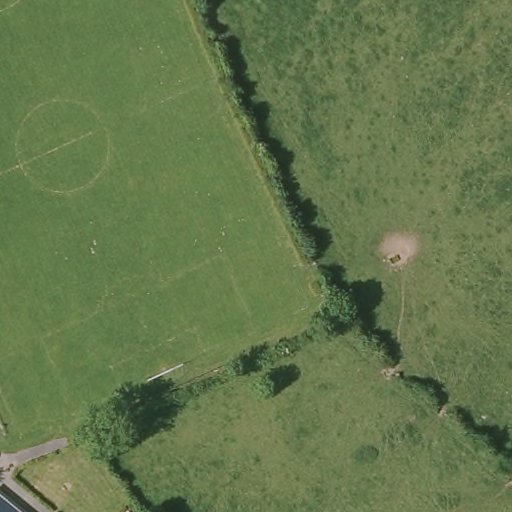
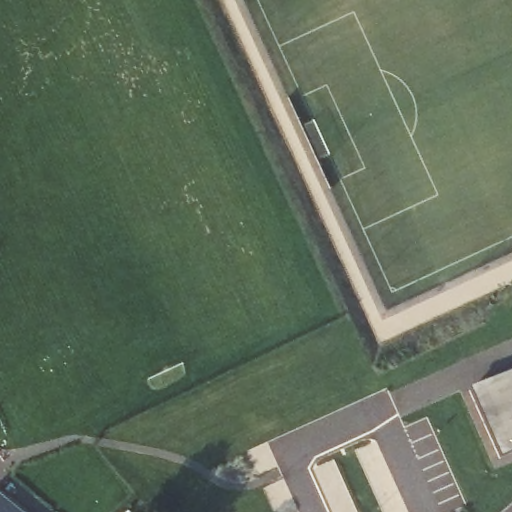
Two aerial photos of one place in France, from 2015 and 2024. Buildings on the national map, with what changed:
new [(502,457),(470,386),(512,370),(512,452),(502,457)]

